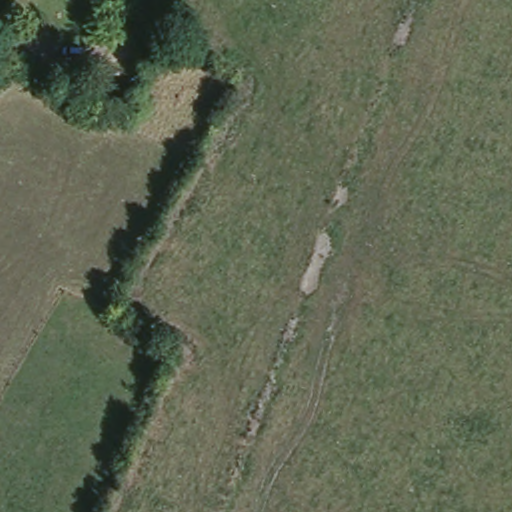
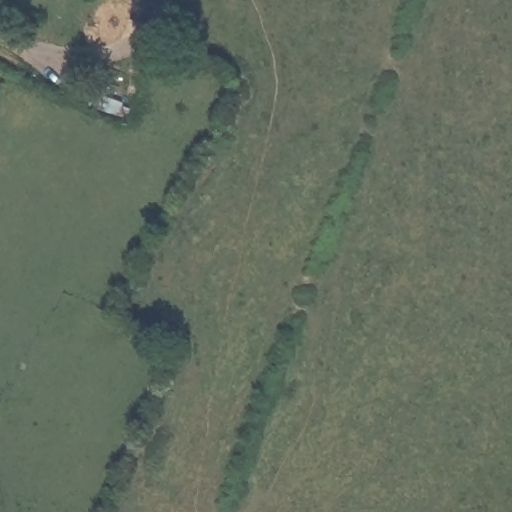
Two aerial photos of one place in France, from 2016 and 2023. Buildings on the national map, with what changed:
unchanged [(119,78),(117,68),(131,64),(134,74),(119,78)]
unchanged [(96,106),(101,95),(123,103),(119,115),(96,106)]

